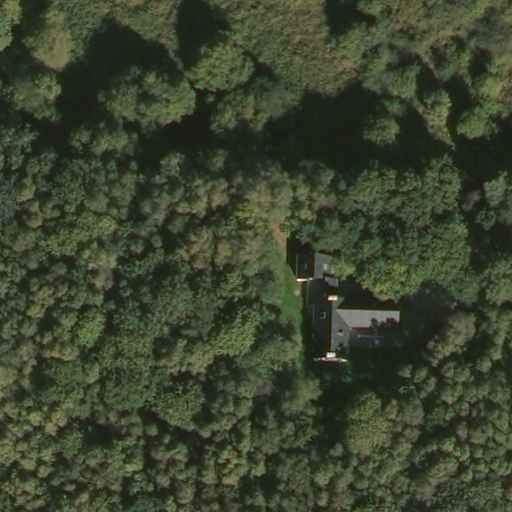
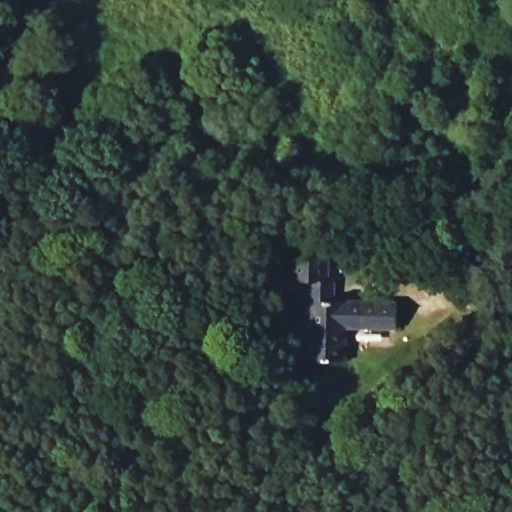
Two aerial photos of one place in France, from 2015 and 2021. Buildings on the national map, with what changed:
unchanged [(330,249),(328,275),(336,277),(336,295),(400,298),(398,325),(351,323),(349,356),(317,355),(320,303),(307,302),(307,276),(293,276),(295,248),(330,249)]

